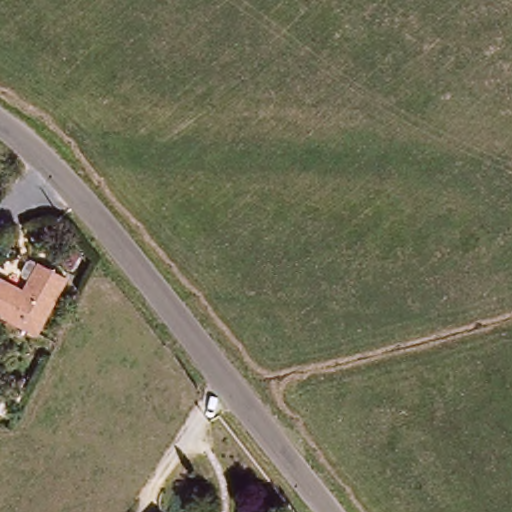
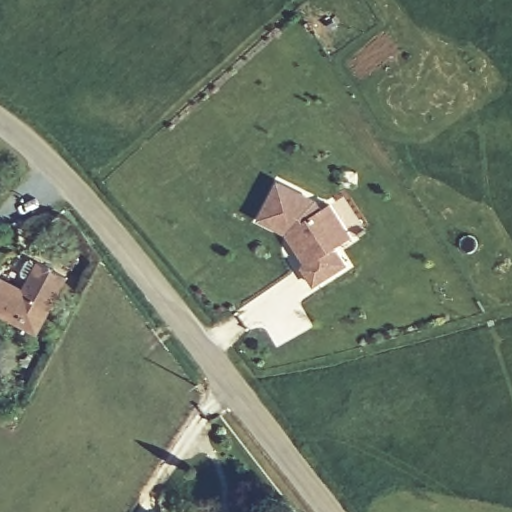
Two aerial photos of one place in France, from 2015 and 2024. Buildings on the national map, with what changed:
new [(277,184),(314,203),(320,212),(328,206),(350,239),(333,250),(345,266),(313,286),(301,269),(306,266),(293,246),(295,241),(289,232),(285,235),(258,221),(277,184)]
unchanged [(0,311),(0,276),(25,290),(40,261),(54,269),(66,276),(57,294),(37,331),(0,311)]

